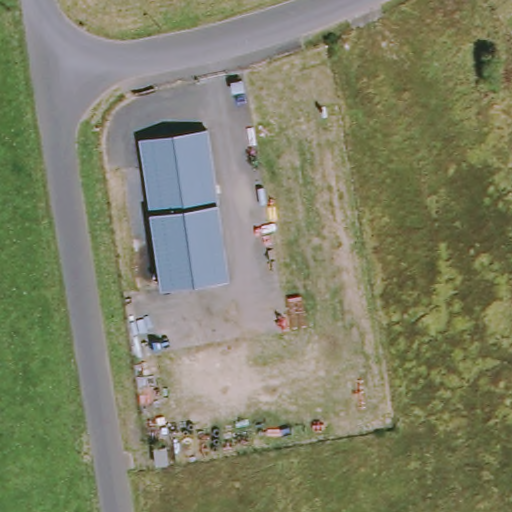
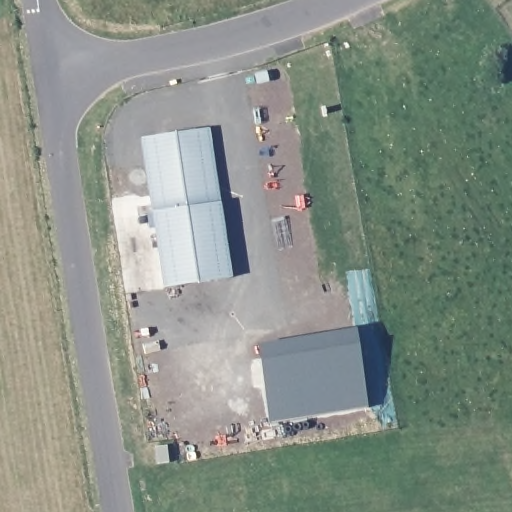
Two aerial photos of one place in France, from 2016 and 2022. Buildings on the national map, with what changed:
unchanged [(154,215),(143,141),(210,131),(221,206),(230,280),(165,290),(154,215)]
new [(355,329),(366,406),(268,422),(257,346),(355,329)]
unchanged [(155,448),(165,447),(168,464),(157,466),(155,448)]

